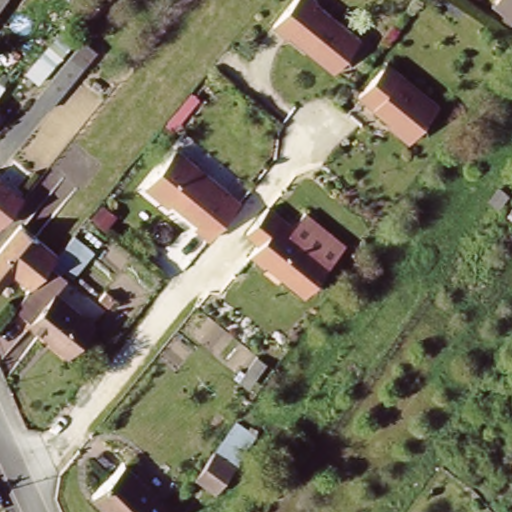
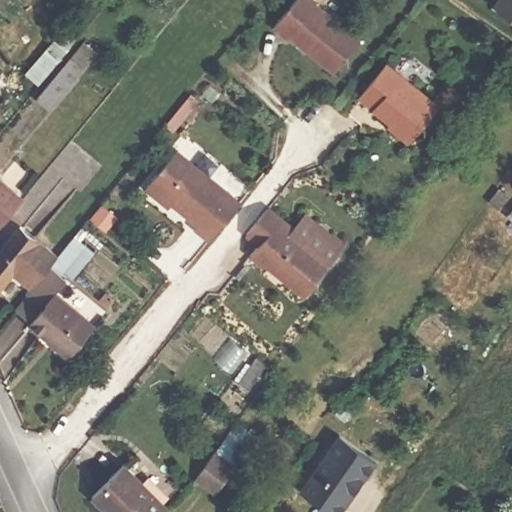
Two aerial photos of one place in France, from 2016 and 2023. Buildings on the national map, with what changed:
unchanged [(8,0),(0,12),(0,0),(8,0)]
unchanged [(358,40),(331,72),(287,35),(285,37),(273,27),(296,0),(314,0),(312,1),(358,40)]
unchanged [(512,0),(512,6),(504,0),(512,0)]
unchanged [(80,67),(48,110),(37,100),(69,58),(80,67)]
unchanged [(385,63),(437,106),(407,141),(392,129),(394,127),(357,96),(385,63)]
unchanged [(203,239),(190,228),(193,224),(159,196),(155,201),(140,189),(171,150),(234,200),(203,239)]
unchanged [(2,224),(0,222),(0,175),(25,196),(2,224)]
unchanged [(257,246),(245,232),(268,202),(295,223),(305,209),(347,242),(330,265),(305,295),(250,253),(257,246)]
unchanged [(0,286),(0,253),(24,223),(60,252),(50,263),(34,284),(16,270),(2,287),(0,286)]
unchanged [(34,284),(50,263),(68,278),(57,292),(95,324),(72,353),(15,307),(29,290),(34,284)]
unchanged [(217,446),(237,420),(257,434),(237,462),(216,491),(195,475),(217,446)]
new [(345,512),(333,512),(301,490),(340,434),(380,461),(345,512)]
unchanged [(161,512),(115,512),(95,492),(127,460),(170,503),(161,512)]

